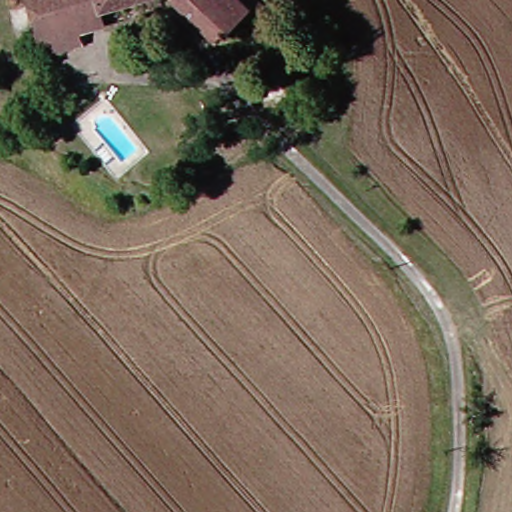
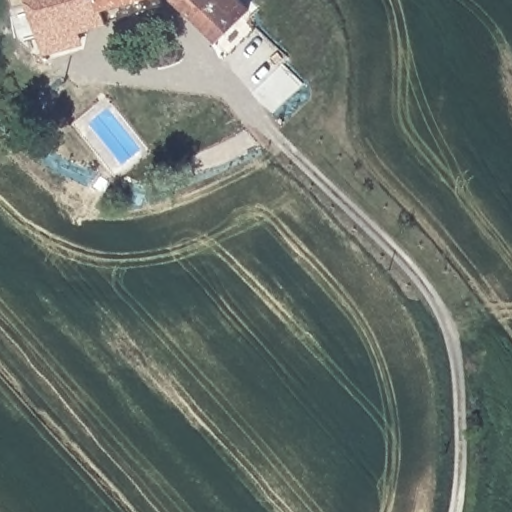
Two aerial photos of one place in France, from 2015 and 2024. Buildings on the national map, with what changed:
unchanged [(52,59),(49,45),(37,5),(18,10),(15,0),(147,0),(105,12),(108,27),(85,34),(89,48),(52,59)]
unchanged [(242,21),(219,44),(177,0),(241,0),(251,11),(242,21)]
unchanged [(285,16),(273,5),(279,0),(283,0),(292,9),(285,16)]
unchanged [(285,113),(266,93),(289,71),(308,92),(285,113)]

